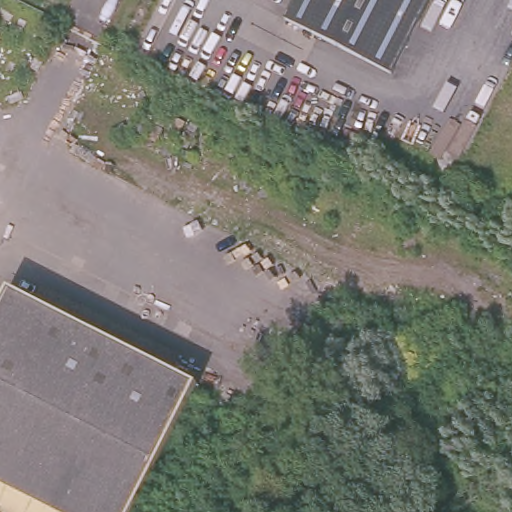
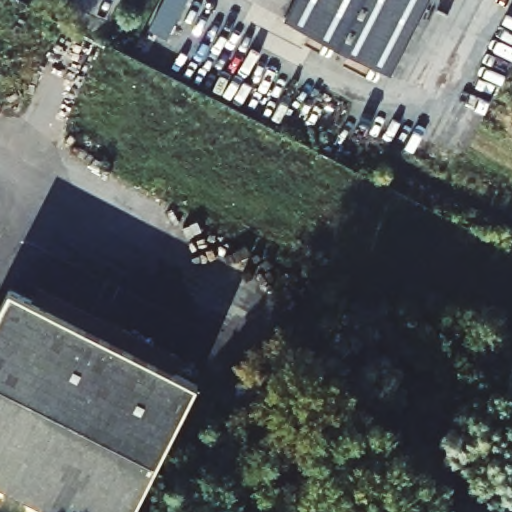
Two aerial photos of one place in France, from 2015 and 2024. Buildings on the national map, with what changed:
new [(149,29),(164,0),(188,0),(168,39),(149,29)]
unchanged [(283,20),(293,0),(427,0),(390,75),(283,20)]
unchanged [(3,291),(191,386),(128,512),(46,512),(0,489),(0,297),(3,291)]
unchanged [(46,512),(0,512),(0,489),(46,512)]

